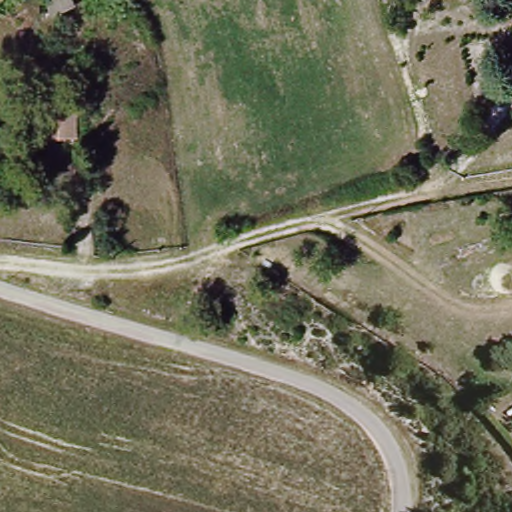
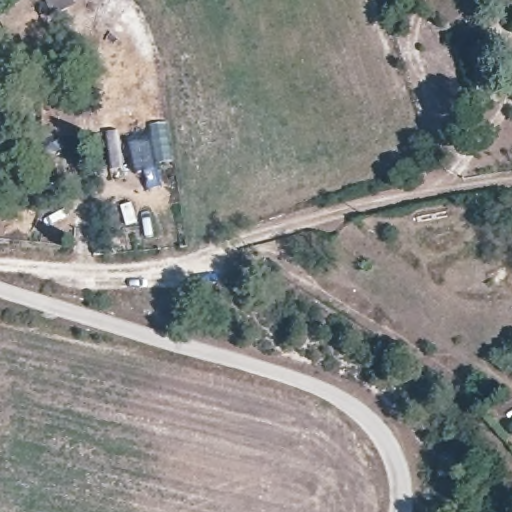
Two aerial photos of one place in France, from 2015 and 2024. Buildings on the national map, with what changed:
unchanged [(44,117),(41,102),(77,97),(80,138),(62,139),(48,140),(44,117)]

